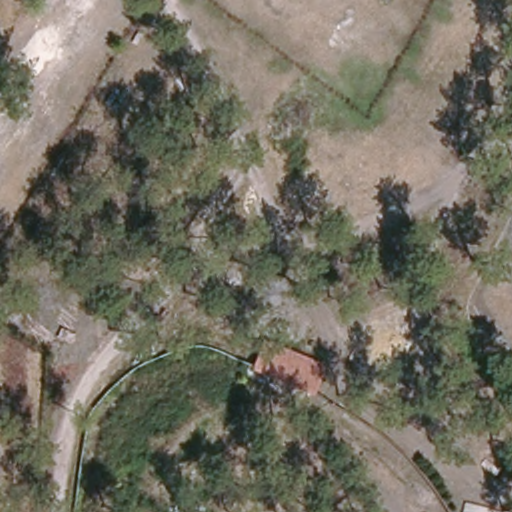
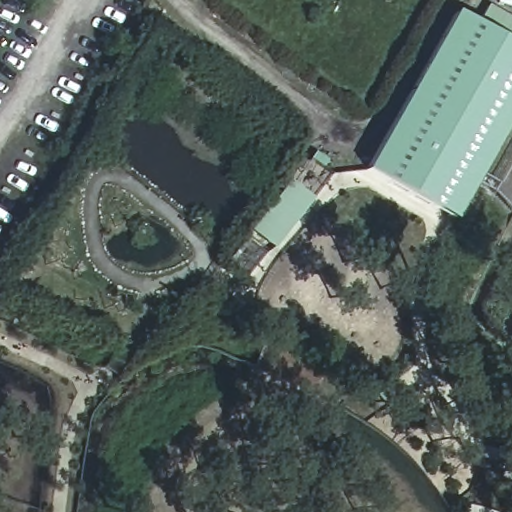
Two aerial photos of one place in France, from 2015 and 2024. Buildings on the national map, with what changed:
new [(364,167),(455,10),(472,20),(487,4),(512,18),(512,116),(454,219),(364,167)]
new [(251,230),(289,179),(313,197),(274,247),(251,230)]
unchanged [(313,395),(250,369),(262,340),(324,363),(313,395)]

